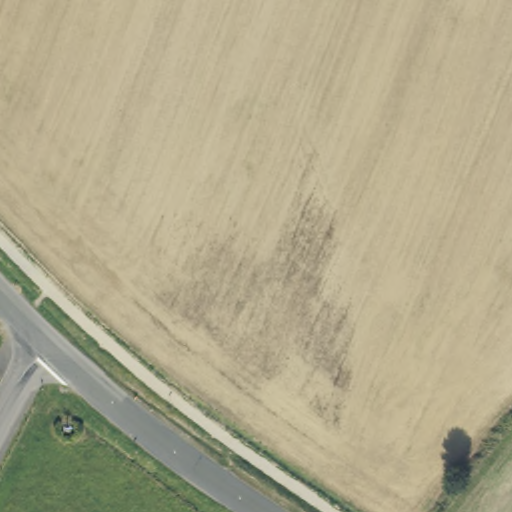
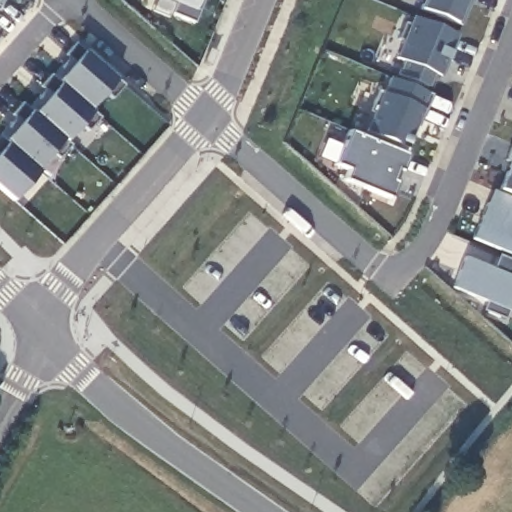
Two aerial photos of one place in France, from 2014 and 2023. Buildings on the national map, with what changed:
new [(3,0),(0,4),(0,0),(3,0)]
new [(169,14),(174,2),(169,0),(202,0),(192,24),(169,14)]
new [(465,0),(462,8),(466,10),(460,26),(419,9),(423,0),(465,0)]
new [(441,80),(433,78),(429,86),(397,74),(402,59),(396,58),(413,19),(457,35),(441,80)]
new [(92,108),(95,113),(66,143),(63,140),(13,199),(0,188),(0,149),(6,143),(3,139),(30,110),(33,113),(58,83),(55,79),(82,49),(117,81),(92,108)]
new [(408,149),(366,133),(389,78),(430,94),(408,149)]
new [(347,130),(406,155),(387,199),(342,180),(346,170),(332,164),(347,130)]
new [(493,189),(500,189),(512,160),(512,256),(472,239),(493,189)]
new [(482,310),(485,303),(451,289),(464,255),(494,269),(499,255),(512,262),(512,302),(504,319),(482,310)]

